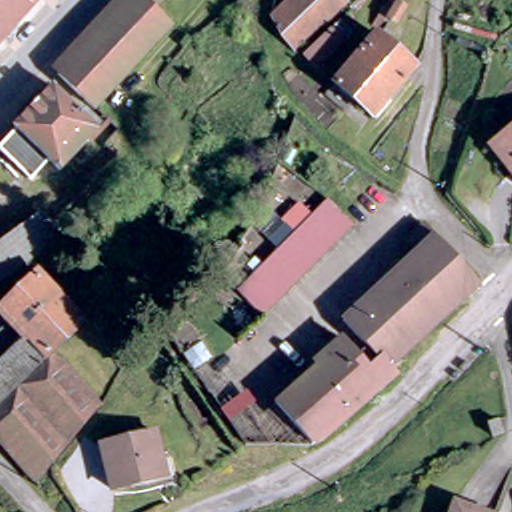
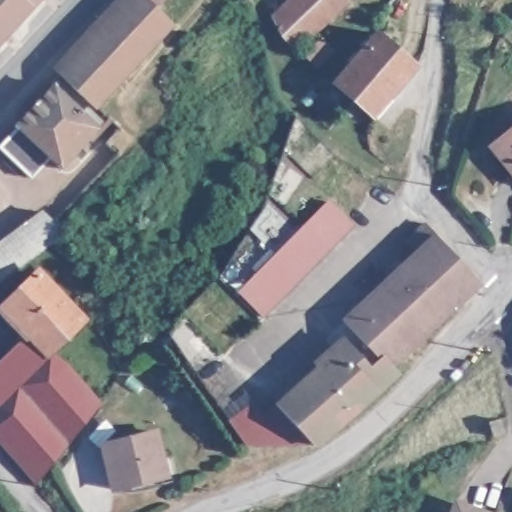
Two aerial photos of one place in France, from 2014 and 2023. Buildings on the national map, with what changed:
unchanged [(0,0),(29,0),(0,32),(0,0)]
unchanged [(54,68),(119,0),(152,0),(150,3),(167,19),(90,102),(54,68)]
unchanged [(272,15),(288,0),(342,0),(295,44),(272,15)]
unchanged [(368,113),(331,79),(374,30),(410,63),(368,113)]
unchanged [(55,164),(46,155),(27,174),(0,147),(0,137),(15,124),(12,120),(50,80),(93,124),(55,164)]
unchanged [(125,135),(122,138),(112,149),(101,138),(113,124),(125,135)]
unchanged [(497,153),(488,143),(512,124),(512,173),(495,154),(497,153)]
unchanged [(267,249),(323,194),(347,219),(290,274),(267,249)]
unchanged [(50,213),(62,224),(49,234),(19,255),(0,272),(0,233),(40,203),(49,211),(50,213)]
unchanged [(358,373),(367,366),(361,359),(371,351),(339,317),(410,249),(400,238),(418,221),(473,278),(383,363),(392,371),(372,388),(358,373)]
unchanged [(256,308),(232,284),(267,249),(290,274),(256,308)]
unchanged [(0,437),(0,351),(23,329),(0,304),(0,302),(36,268),(78,313),(43,346),(56,359),(60,356),(95,393),(30,472),(0,437)]
unchanged [(332,346),(327,341),(337,333),(361,359),(367,366),(358,373),(372,388),(316,438),(307,439),(272,399),(332,346)]
unchanged [(240,441),(191,374),(203,364),(252,417),(273,441),(240,441)]
unchanged [(272,399),(307,439),(273,441),(252,417),(272,399)]
unchanged [(154,454),(147,456),(153,478),(107,489),(95,445),(148,432),(154,454)]
unchanged [(492,509),(491,512),(447,512),(453,494),(492,509)]

